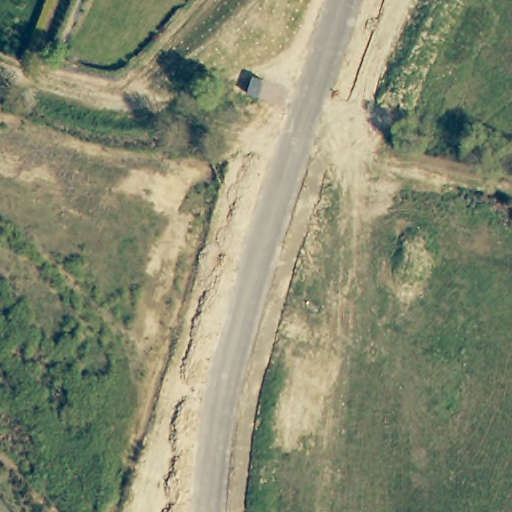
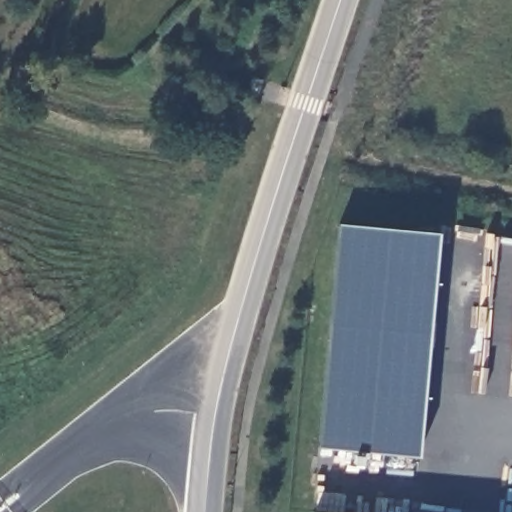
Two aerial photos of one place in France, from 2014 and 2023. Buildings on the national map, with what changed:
new [(439,234),(418,457),(318,447),(338,225),(439,234)]

